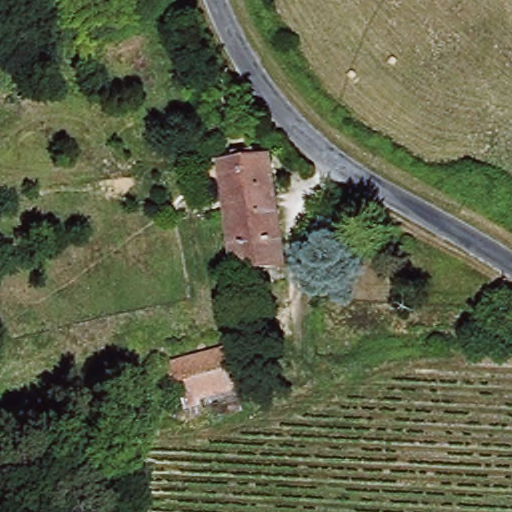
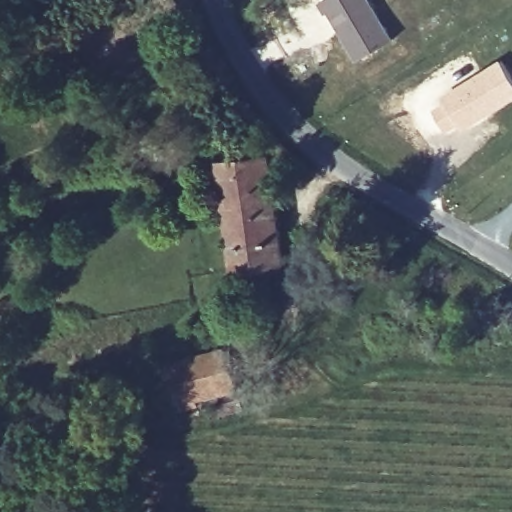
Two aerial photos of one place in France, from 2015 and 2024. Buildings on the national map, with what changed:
new [(322,0),(369,0),(393,37),(354,62),(317,4),(322,0)]
new [(500,58),(512,77),(512,100),(464,130),(440,96),(500,58)]
unchanged [(236,266),(223,159),(273,152),(286,261),(236,266)]
unchanged [(202,396),(203,405),(178,411),(165,361),(230,343),(241,386),(202,396)]

